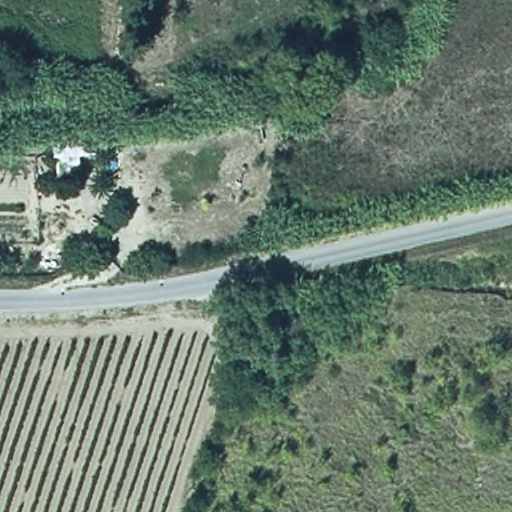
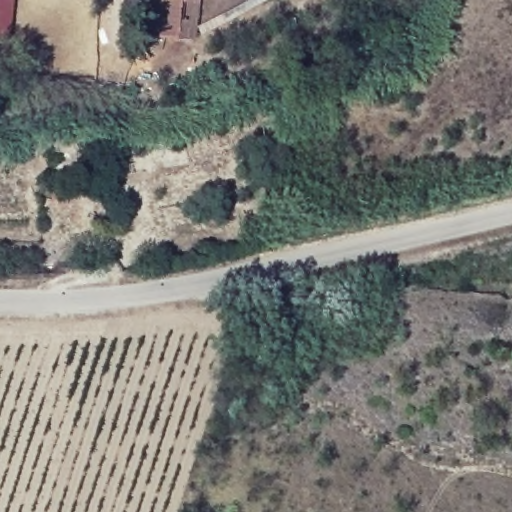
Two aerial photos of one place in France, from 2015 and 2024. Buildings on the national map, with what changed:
new [(10,47),(0,45),(0,0),(14,0),(10,47)]
new [(143,28),(153,29),(155,0),(199,0),(197,41),(142,38),(143,28)]
unchanged [(63,155),(84,155),(87,186),(64,188),(63,155)]

